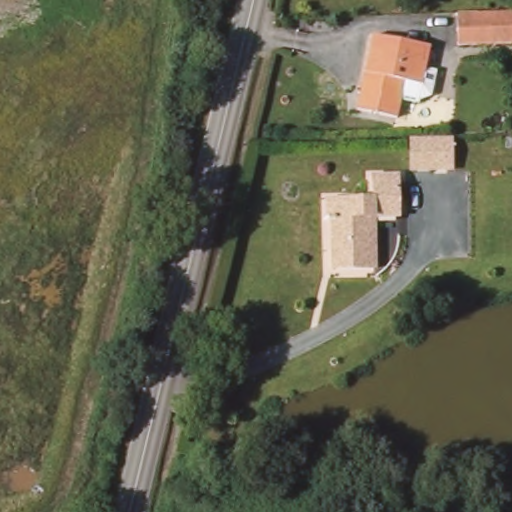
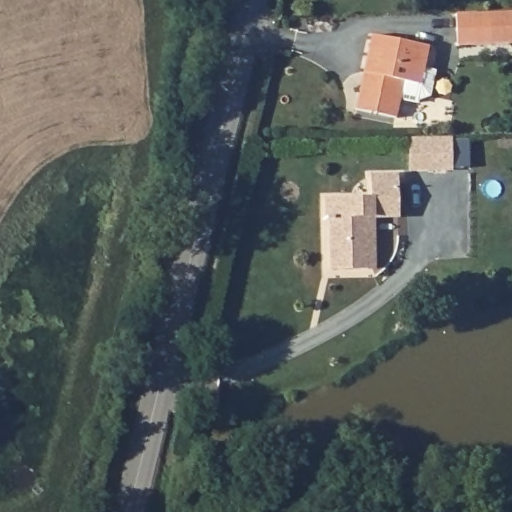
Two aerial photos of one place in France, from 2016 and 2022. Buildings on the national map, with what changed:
unchanged [(457,14),(512,12),(512,44),(458,46),(457,14)]
unchanged [(373,40),(430,51),(421,90),(405,87),(396,124),(356,115),(360,96),(364,79),(373,40)]
unchanged [(452,139),(452,169),(411,170),(411,140),(452,139)]
unchanged [(398,176),(398,217),(374,217),(374,269),(333,270),(331,220),(324,220),(324,218),(328,218),(328,200),(373,199),(372,177),(398,176)]

